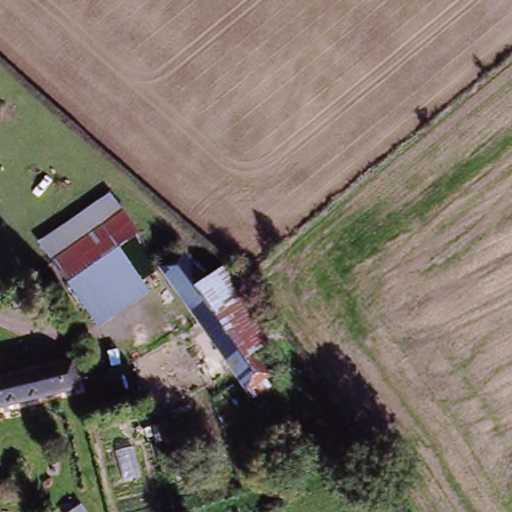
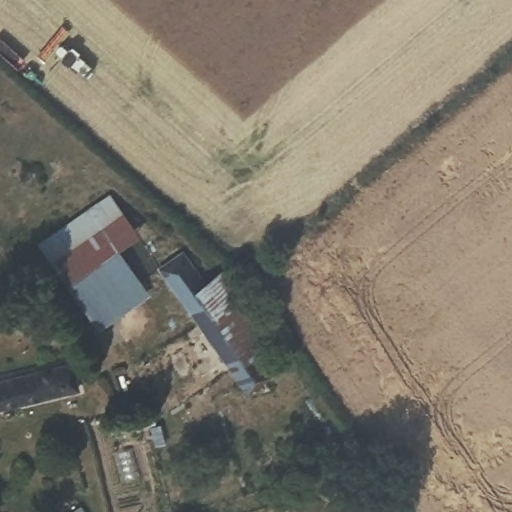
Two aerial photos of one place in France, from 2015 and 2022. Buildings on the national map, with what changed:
unchanged [(39,246),(102,195),(132,235),(123,241),(69,282),(39,246)]
unchanged [(158,289),(97,327),(68,283),(123,241),(158,289)]
unchanged [(250,383),(228,358),(155,266),(174,250),(200,283),(222,266),(251,304),(257,300),(277,327),(263,338),(278,360),(268,368),(250,383)]
unchanged [(84,386),(0,407),(0,382),(77,362),(84,386)]

